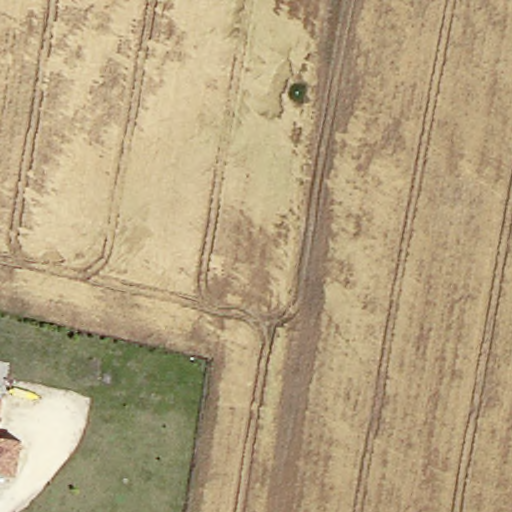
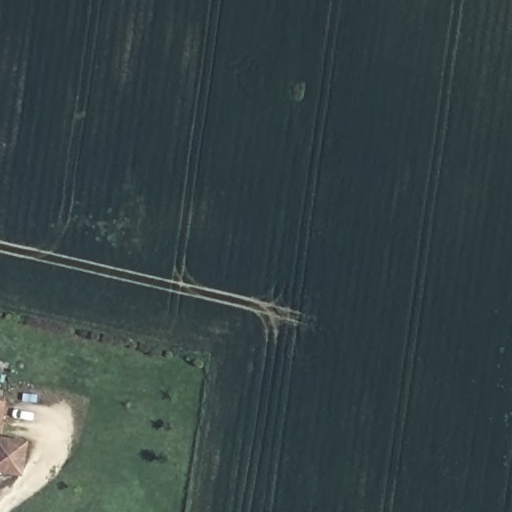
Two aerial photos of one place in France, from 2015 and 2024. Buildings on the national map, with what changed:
unchanged [(19,442),(16,476),(0,474),(0,440),(19,442)]

